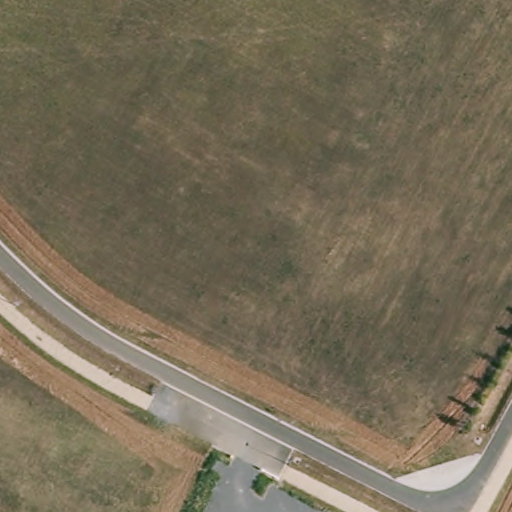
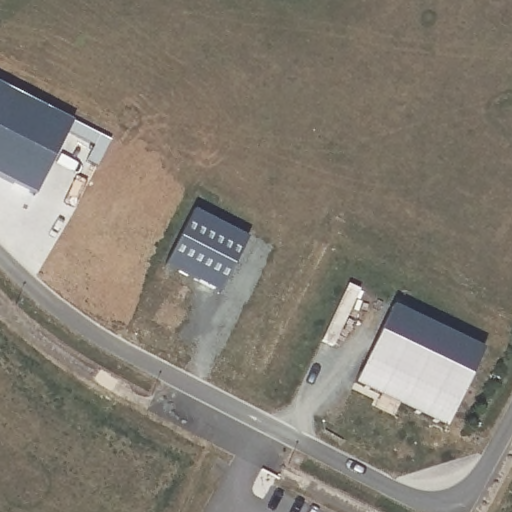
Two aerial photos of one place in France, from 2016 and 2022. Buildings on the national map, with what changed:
new [(166,267),(195,211),(248,237),(220,293),(166,267)]
new [(393,305),(484,348),(447,426),(356,382),(393,305)]

